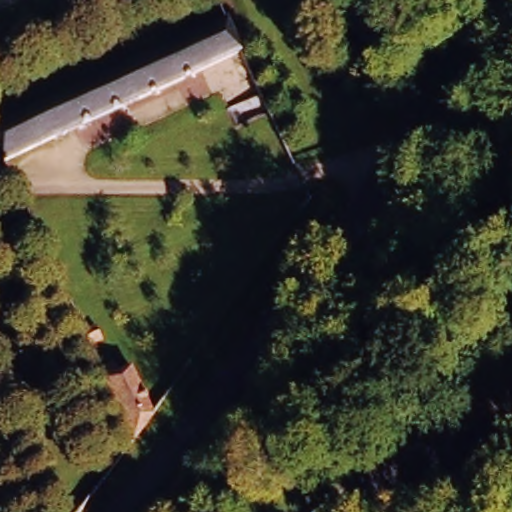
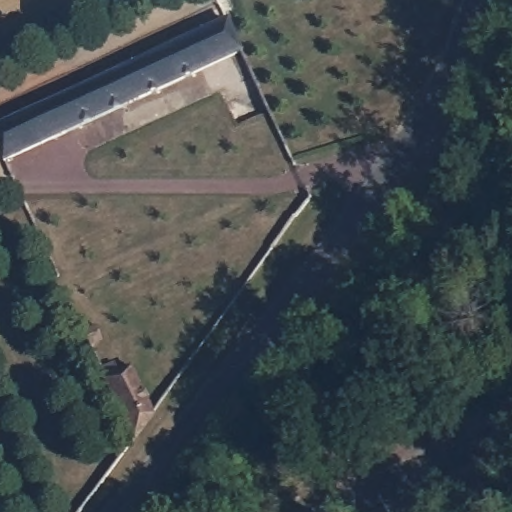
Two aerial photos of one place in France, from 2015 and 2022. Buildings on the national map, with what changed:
unchanged [(0,126),(97,80),(232,16),(242,11),(257,44),(16,158),(0,126)]
unchanged [(80,336),(97,328),(100,338),(85,345),(80,336)]
unchanged [(132,441),(95,366),(111,357),(113,362),(115,367),(127,362),(154,416),(132,442),(132,441)]

